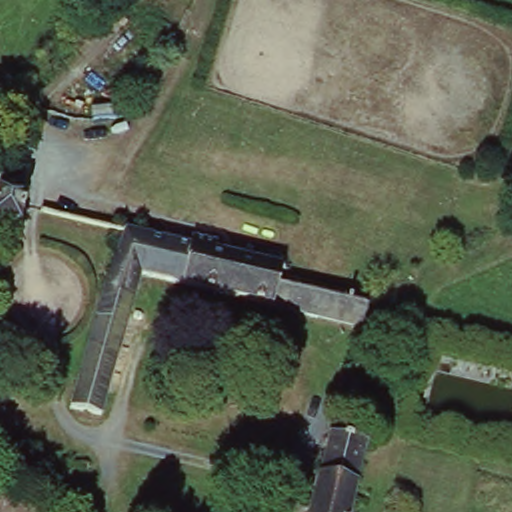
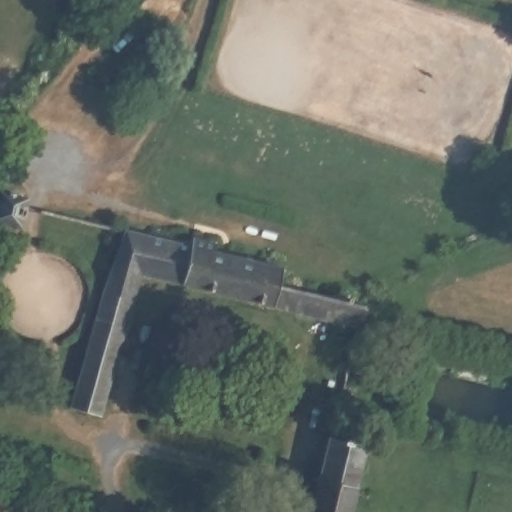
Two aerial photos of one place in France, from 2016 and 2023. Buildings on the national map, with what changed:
unchanged [(24,195),(23,199),(18,224),(0,220),(0,189),(24,195)]
unchanged [(356,325),(140,272),(101,407),(69,400),(120,226),(190,245),(194,236),(213,241),(211,250),(282,270),(279,285),(361,306),(356,325)]
unchanged [(329,423),(368,432),(349,512),(306,512),(329,423)]
unchanged [(82,461),(67,512),(48,512),(31,508),(48,452),(82,461)]

